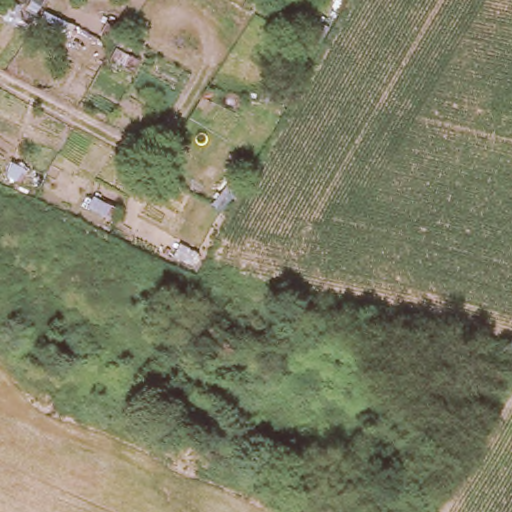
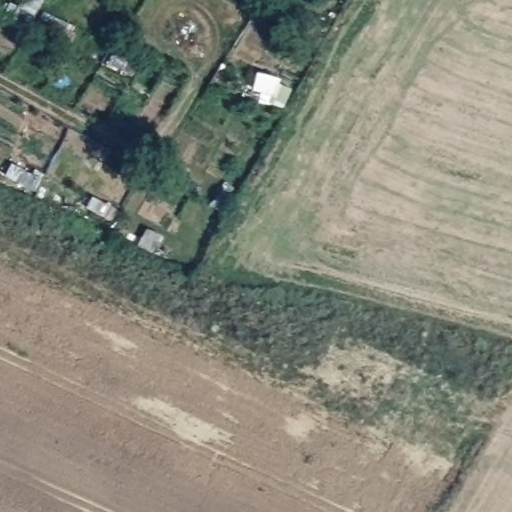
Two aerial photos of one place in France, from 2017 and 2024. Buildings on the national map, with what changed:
unchanged [(74,29),(61,46),(38,32),(32,42),(0,27),(0,22),(11,0),(22,0),(74,29)]

